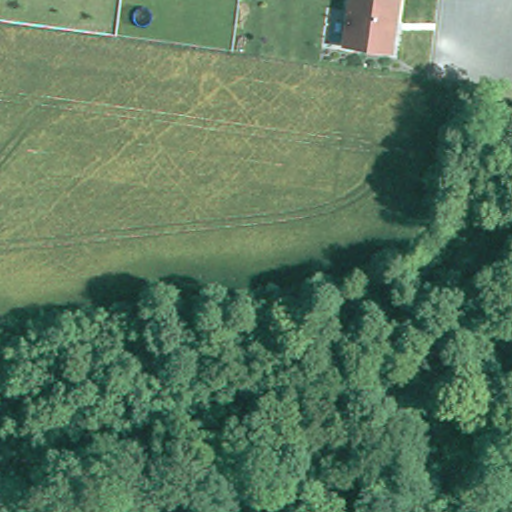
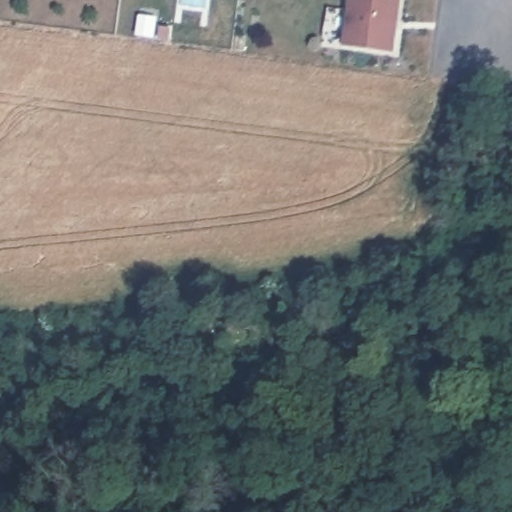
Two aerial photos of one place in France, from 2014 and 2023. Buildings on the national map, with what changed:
unchanged [(351,0),(398,0),(396,24),(393,22),(391,30),(396,32),(393,55),(345,47),(351,0)]

